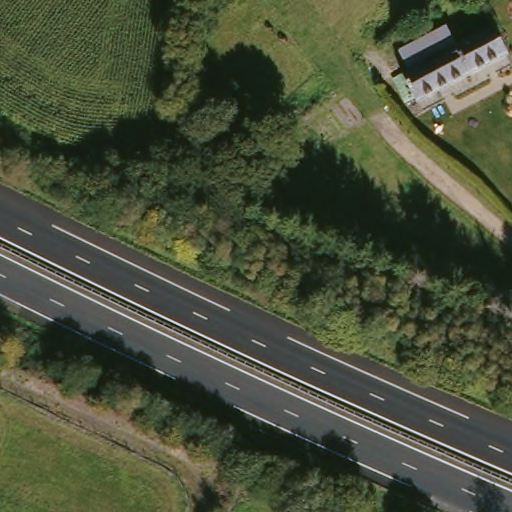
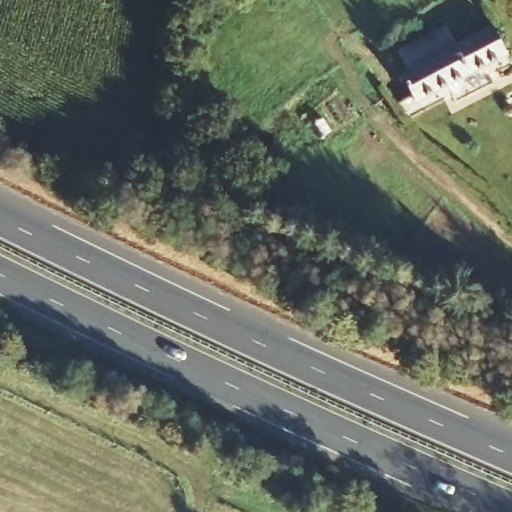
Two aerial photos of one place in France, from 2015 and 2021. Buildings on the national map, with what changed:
unchanged [(512,54),(512,55),(421,104),(405,75),(497,25),(512,54)]

